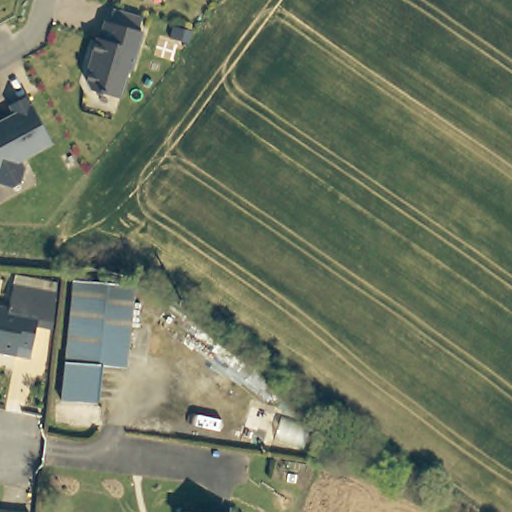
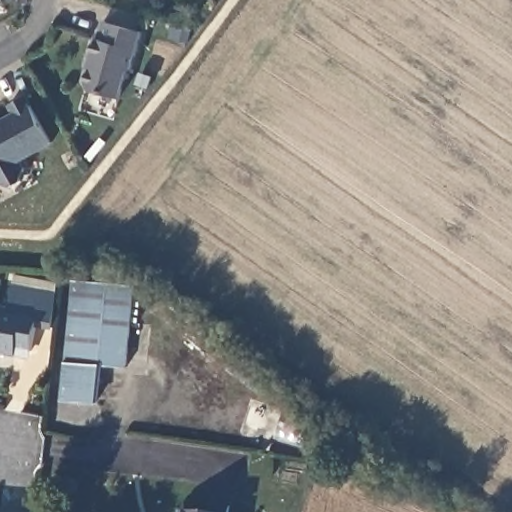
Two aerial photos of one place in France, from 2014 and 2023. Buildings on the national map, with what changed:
unchanged [(133,71),(129,73),(121,100),(92,91),(87,83),(94,57),(92,57),(97,39),(100,40),(105,22),(110,23),(114,9),(143,17),(139,31),(144,33),(133,71)]
unchanged [(31,159),(36,168),(33,180),(23,185),(11,182),(0,161),(0,128),(26,113),(21,104),(38,95),(63,141),(31,159)]
unchanged [(129,368),(102,365),(97,400),(61,395),(74,277),(138,283),(129,368)]
unchanged [(27,354),(11,351),(10,357),(0,355),(0,309),(3,310),(7,285),(56,292),(50,330),(32,328),(27,354)]
unchanged [(25,512),(0,512),(0,506),(25,509),(25,512)]
unchanged [(176,510),(188,512),(176,512),(176,510)]

